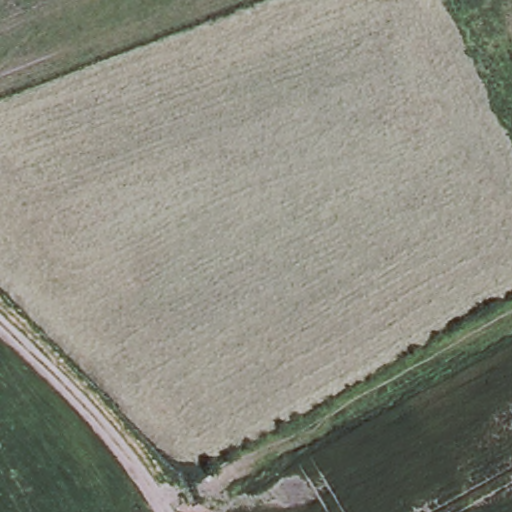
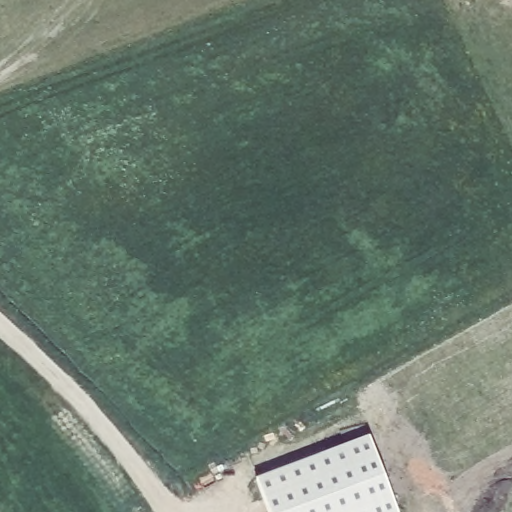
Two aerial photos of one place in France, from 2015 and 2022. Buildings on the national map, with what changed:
new [(370,439),(396,512),(268,512),(256,482),(370,439)]

